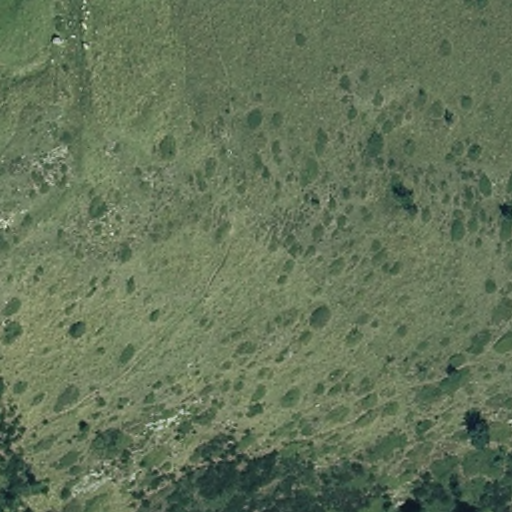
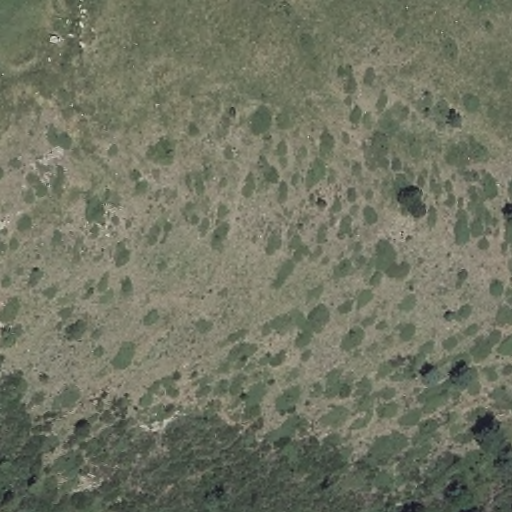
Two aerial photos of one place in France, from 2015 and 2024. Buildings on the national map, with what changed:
[]

